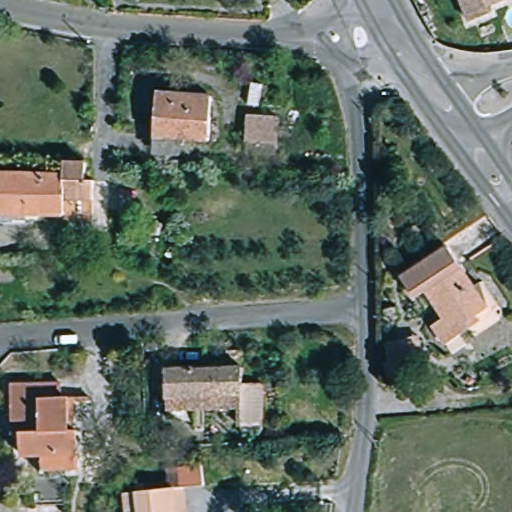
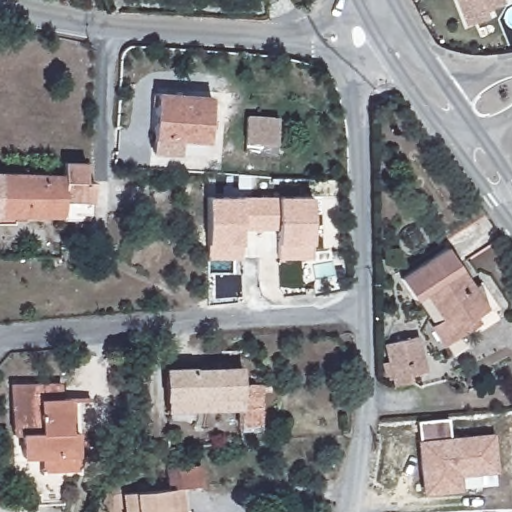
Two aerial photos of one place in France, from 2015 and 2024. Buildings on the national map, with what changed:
unchanged [(492,4),(494,9),(472,18),(465,0),(500,0),(492,4)]
unchanged [(151,154),(153,137),(156,91),(211,96),(208,142),(180,140),(179,155),(151,154)]
unchanged [(280,151),(250,150),(252,112),(281,114),(280,151)]
unchanged [(95,182),(95,221),(61,220),(61,215),(62,177),(63,169),(63,162),(84,164),(84,170),(84,182),(95,182)]
unchanged [(16,214),(17,195),(0,195),(0,175),(43,176),(43,172),(54,172),(54,177),(62,177),(61,215),(16,214)]
unchanged [(16,214),(0,213),(0,195),(17,195),(16,214)]
new [(311,195),(310,244),(311,258),(277,258),(277,243),(275,226),(241,226),(241,242),(240,257),(206,256),(206,242),(207,195),(242,195),(276,195),(311,195)]
unchanged [(160,242),(145,238),(148,225),(163,230),(160,242)]
unchanged [(484,301),(472,310),(475,315),(438,340),(427,322),(438,315),(425,292),(416,297),(403,275),(450,246),(484,301)]
unchanged [(397,316),(385,313),(387,305),(400,307),(397,316)]
unchanged [(418,376),(401,380),(402,386),(386,390),(376,348),(410,341),(418,376)]
unchanged [(240,425),(240,410),(163,411),(163,372),(240,370),(240,385),(259,385),(260,424),(240,425)]
unchanged [(38,460),(18,461),(17,438),(9,438),(8,413),(7,388),(56,386),(57,402),(64,402),(65,436),(73,436),(74,473),(46,475),(39,475),(38,460)]
new [(461,489),(425,493),(419,422),(449,419),(451,440),(494,435),(497,471),(469,474),(460,475),(461,489)]
unchanged [(174,487),(174,470),(210,470),(210,492),(192,492),(192,512),(129,512),(129,486),(174,487)]

